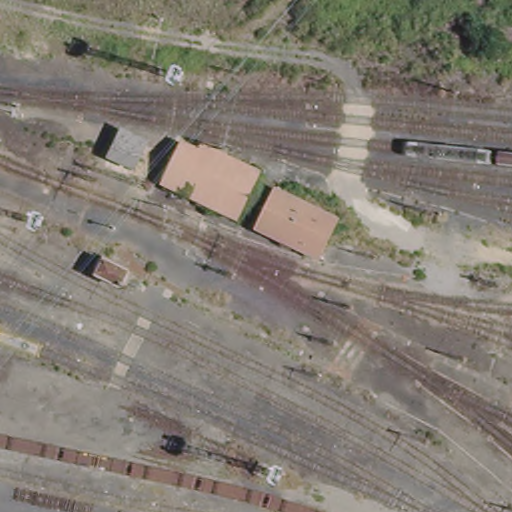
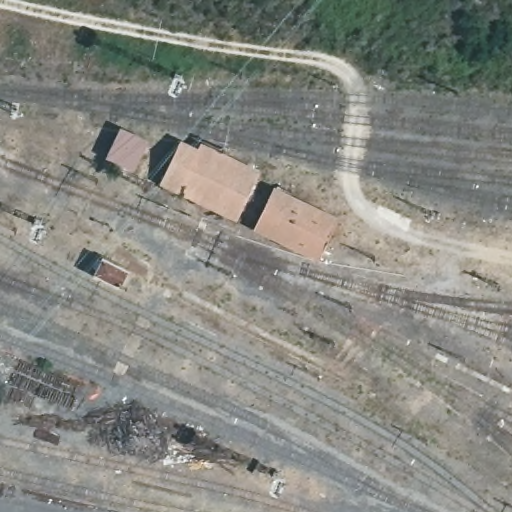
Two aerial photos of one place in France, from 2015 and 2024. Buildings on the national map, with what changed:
unchanged [(137,173),(104,158),(118,126),(152,141),(137,173)]
unchanged [(235,227),(160,188),(187,136),(261,175),(235,227)]
unchanged [(318,264),(249,230),(269,189),(337,224),(318,264)]
unchanged [(131,266),(123,289),(95,279),(102,257),(131,266)]

